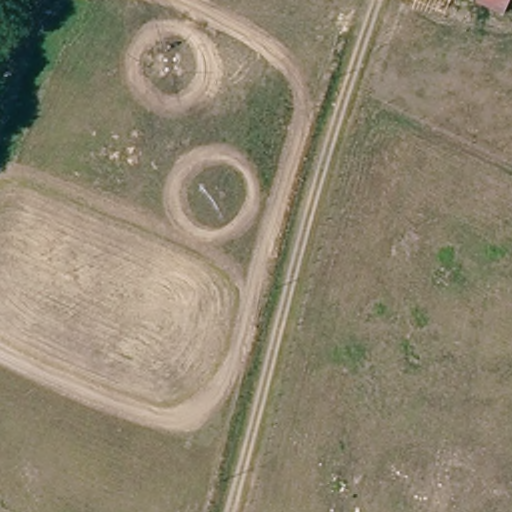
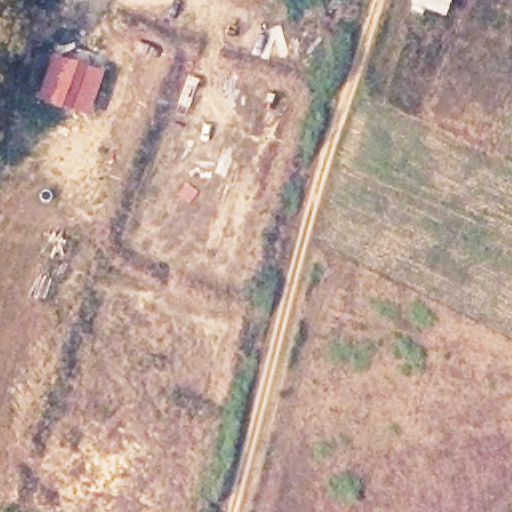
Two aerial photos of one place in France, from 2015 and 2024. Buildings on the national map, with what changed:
new [(414,0),(452,0),(446,17),(412,4),(414,0)]
demolished [(467,0),(511,0),(506,14),(467,0)]
new [(40,97),(52,54),(103,74),(89,116),(40,97)]

